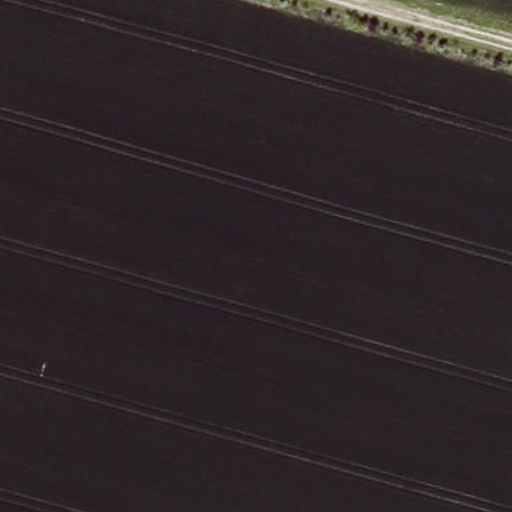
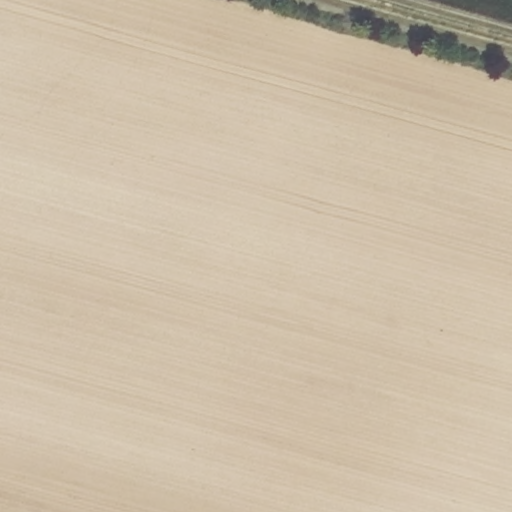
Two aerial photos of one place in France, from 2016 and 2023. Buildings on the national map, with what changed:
[]

